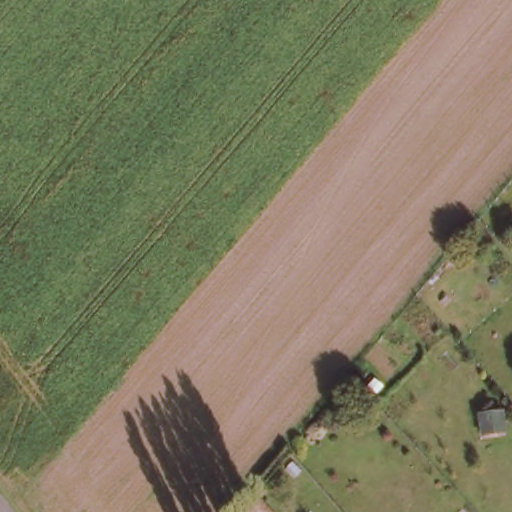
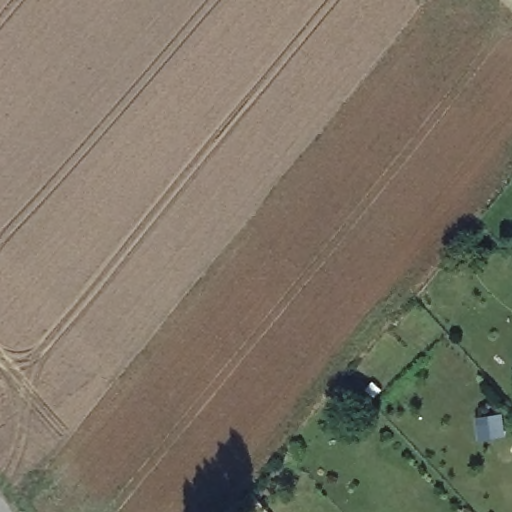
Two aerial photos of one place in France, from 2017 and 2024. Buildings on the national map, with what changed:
unchanged [(476,452),(475,447),(473,430),(498,426),(500,445),(501,450),(476,452)]

